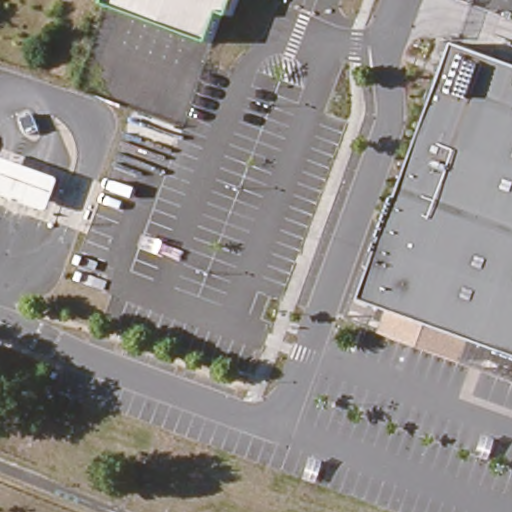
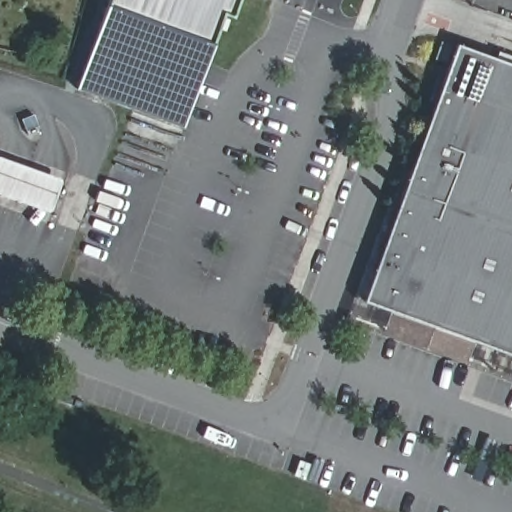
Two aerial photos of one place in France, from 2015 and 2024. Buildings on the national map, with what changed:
unchanged [(224,13),(213,44),(108,6),(110,0),(241,0),(235,17),(224,13)]
new [(213,44),(183,128),(76,89),(108,6),(213,44)]
unchanged [(473,340),(464,364),(383,334),(393,311),(364,301),(458,45),(512,65),(512,355),(473,340)]
unchanged [(50,209),(46,211),(0,193),(0,156),(60,177),(61,181),(50,209)]

